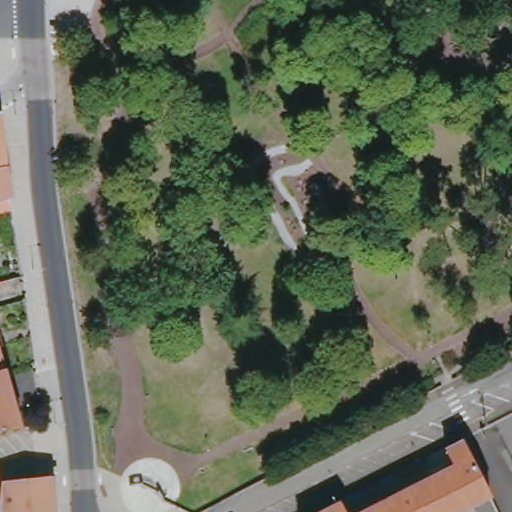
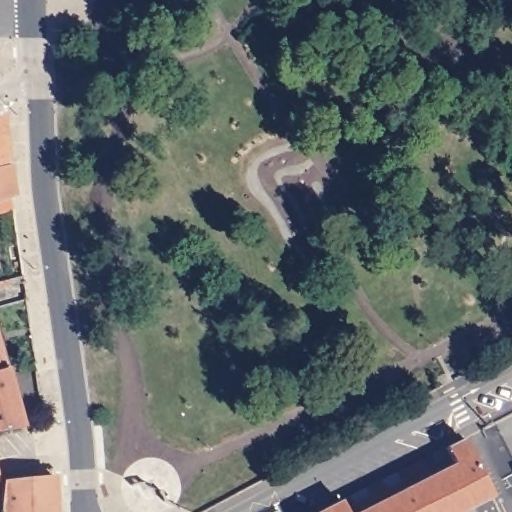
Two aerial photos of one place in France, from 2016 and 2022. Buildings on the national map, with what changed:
unchanged [(5,114),(13,167),(0,170),(0,117),(5,114)]
unchanged [(18,199),(0,205),(0,170),(13,167),(18,199)]
unchanged [(6,372),(0,374),(0,348),(6,372)]
unchanged [(23,428),(0,433),(0,374),(6,372),(23,428)]
unchanged [(416,464),(427,459),(433,470),(436,476),(459,464),(451,447),(467,438),(498,497),(468,512),(321,512),(416,464)]
unchanged [(56,512),(0,512),(0,511),(3,481),(54,477),(56,512)]

